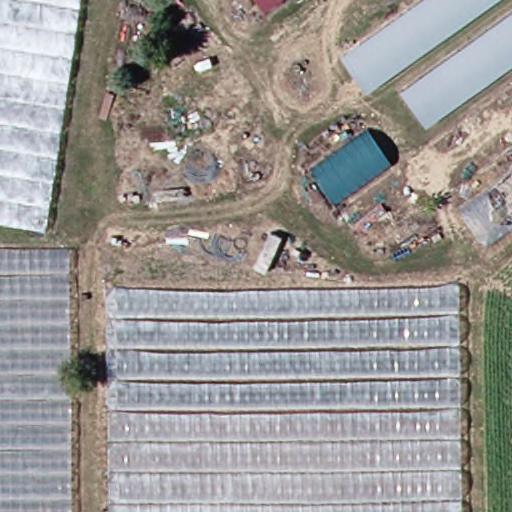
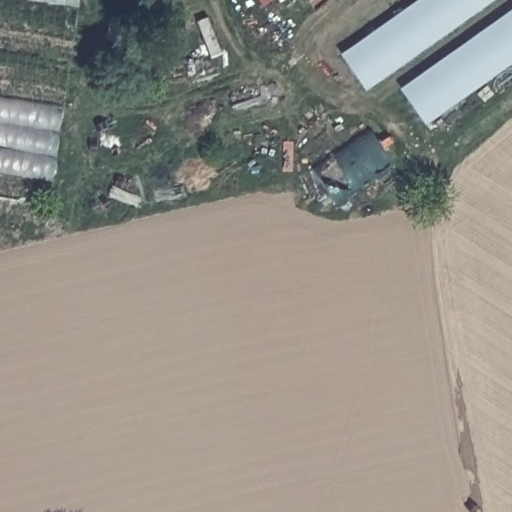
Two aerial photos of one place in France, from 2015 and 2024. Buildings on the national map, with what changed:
unchanged [(83,0),(46,224),(0,217),(0,0),(83,0)]
unchanged [(259,0),(262,0),(260,1),(259,0)]
demolished [(289,26),(328,0),(399,0),(315,59),(289,26)]
unchanged [(501,0),(373,92),(348,56),(427,0),(501,0)]
unchanged [(405,92),(512,16),(512,70),(432,126),(405,92)]
demolished [(347,213),(512,99),(512,150),(374,247),(347,213)]
unchanged [(395,161),(339,204),(314,165),(370,125),(395,161)]
demolished [(466,209),(512,176),(512,230),(492,244),(466,209)]
demolished [(76,512),(0,512),(0,248),(72,247),(76,512)]
demolished [(463,512),(111,512),(107,288),(460,284),(463,512)]

